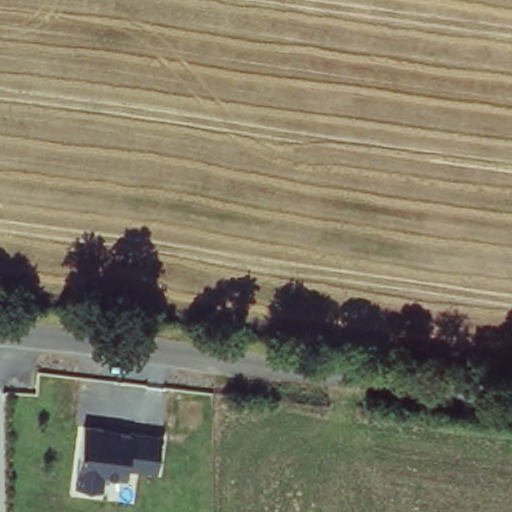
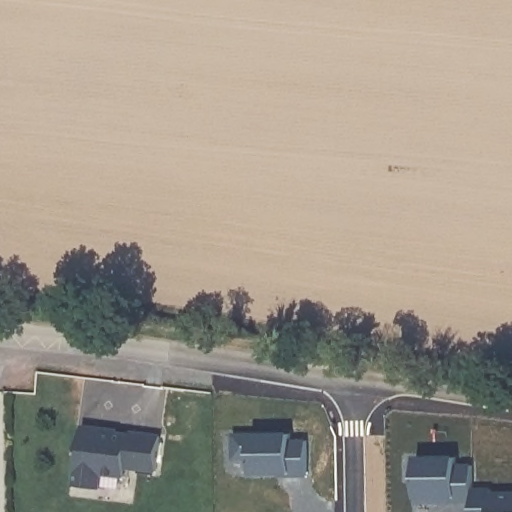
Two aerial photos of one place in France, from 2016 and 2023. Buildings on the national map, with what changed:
unchanged [(161,430),(156,473),(129,470),(128,478),(112,476),(110,494),(77,490),(79,421),(161,430)]
new [(289,432),(289,440),(305,439),(306,475),(288,476),(288,470),(277,470),(276,473),(250,473),(249,458),(231,458),(231,434),(289,432)]
new [(414,455),(455,454),(455,462),(471,462),(472,500),(455,501),(454,492),(443,493),(443,496),(437,496),(437,501),(415,502),(414,455)]
new [(491,490),(512,490),(512,512),(472,512),(472,487),(491,486),(491,490)]

